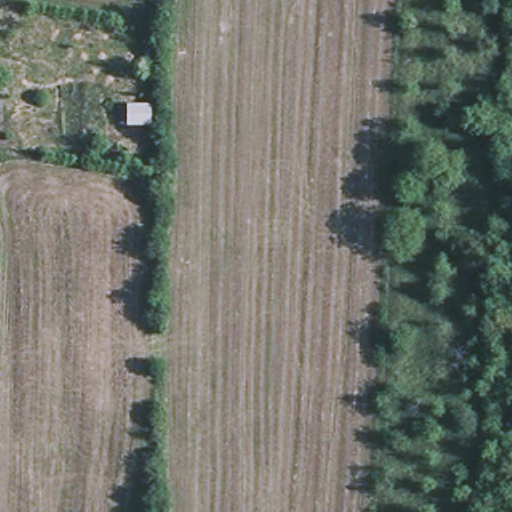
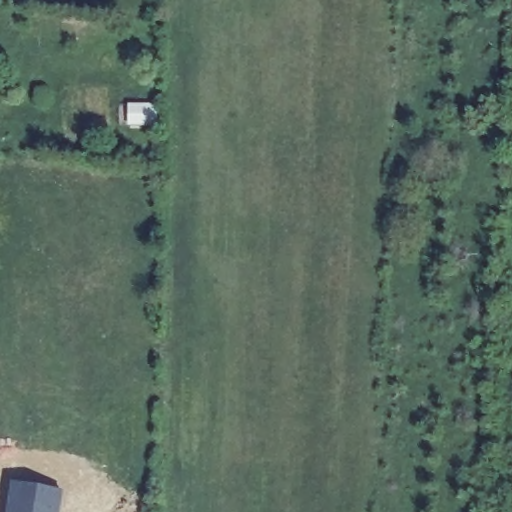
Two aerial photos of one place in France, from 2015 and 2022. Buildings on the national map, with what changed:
new [(58,512),(6,512),(9,484),(62,489),(58,512)]

